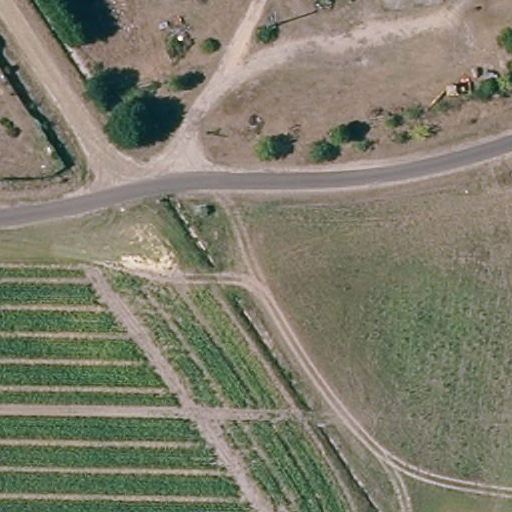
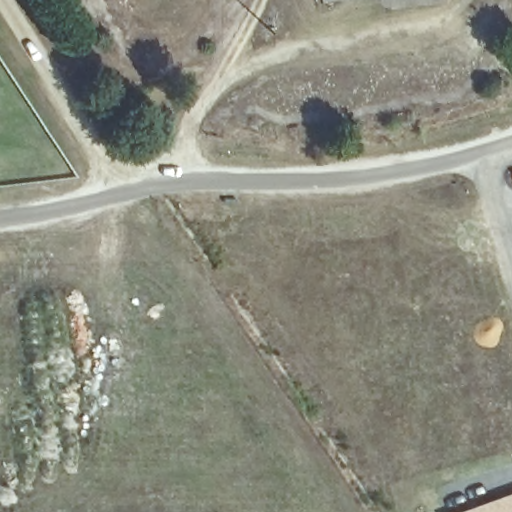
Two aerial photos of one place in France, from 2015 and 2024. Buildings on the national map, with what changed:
demolished [(217,228),(205,229),(205,222),(217,221),(217,228)]
new [(512,512),(459,512),(512,493),(512,512)]

